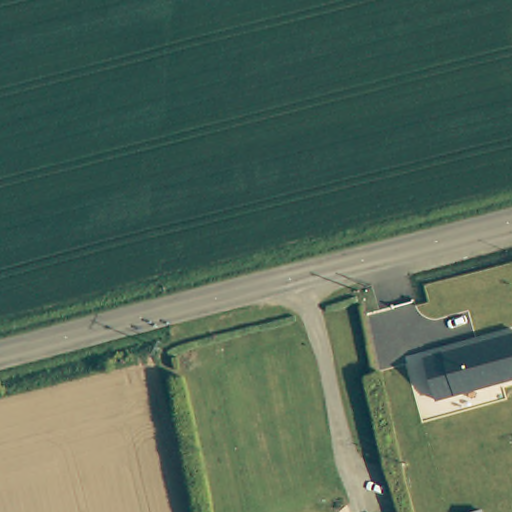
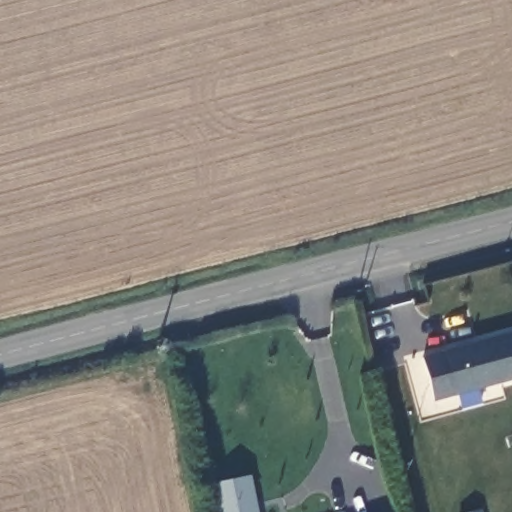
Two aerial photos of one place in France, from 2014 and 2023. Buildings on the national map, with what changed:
unchanged [(421,353),(512,328),(512,375),(433,396),(421,353)]
new [(251,473),(259,512),(213,512),(207,485),(251,473)]

